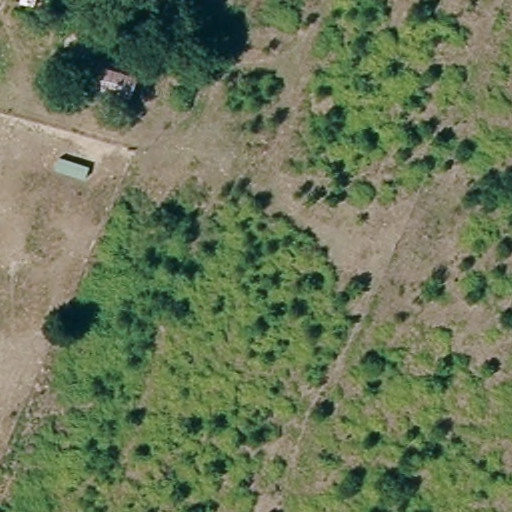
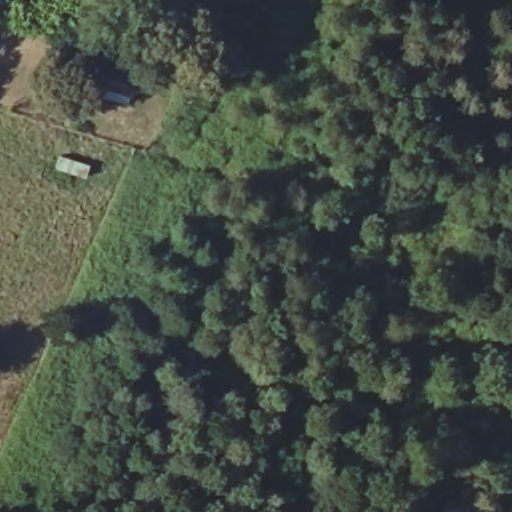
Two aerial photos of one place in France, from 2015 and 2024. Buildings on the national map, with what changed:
unchanged [(82,96),(80,75),(92,59),(149,75),(139,113),(82,96)]

